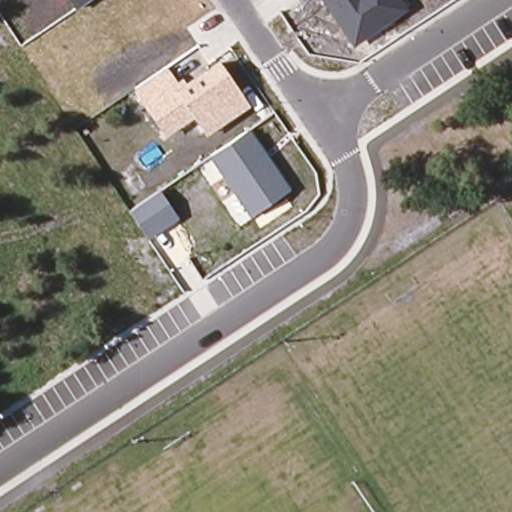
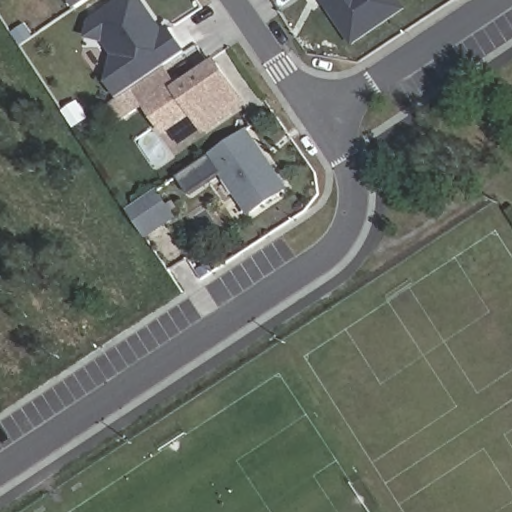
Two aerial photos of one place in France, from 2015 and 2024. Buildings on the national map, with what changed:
unchanged [(73,0),(87,0),(77,7),(73,0)]
new [(161,40),(171,33),(187,57),(120,103),(110,87),(116,60),(106,45),(90,42),(94,26),(132,0),(140,0),(159,27),(157,35),(161,40)]
unchanged [(321,0),(399,0),(406,10),(352,46),(321,0)]
new [(166,37),(161,40),(157,35),(159,27),(166,37)]
unchanged [(205,137),(191,116),(162,136),(134,94),(167,71),(174,81),(181,76),(184,81),(217,57),(250,105),(205,137)]
new [(85,117),(72,126),(62,111),(75,102),(85,117)]
unchanged [(250,216),(210,159),(252,130),(290,187),(250,216)]
unchanged [(147,239),(130,211),(159,192),(177,219),(147,239)]

